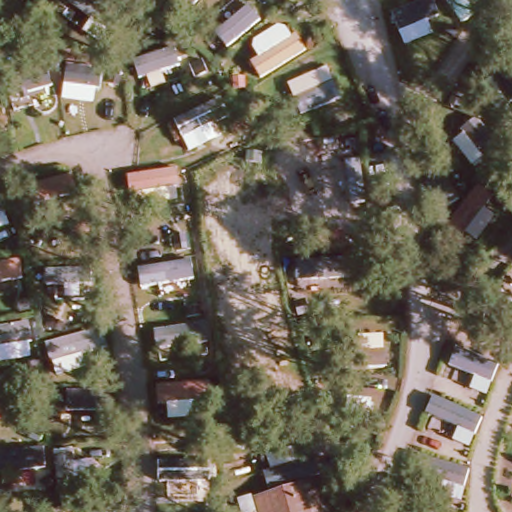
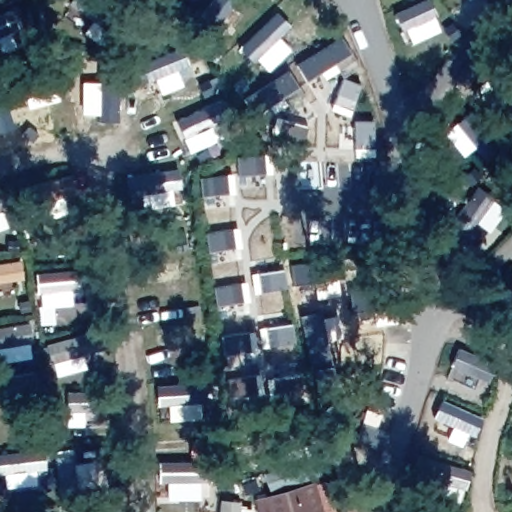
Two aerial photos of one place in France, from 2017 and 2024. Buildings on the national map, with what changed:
unchanged [(323,512),(261,512),(257,497),(316,482),(323,512)]

